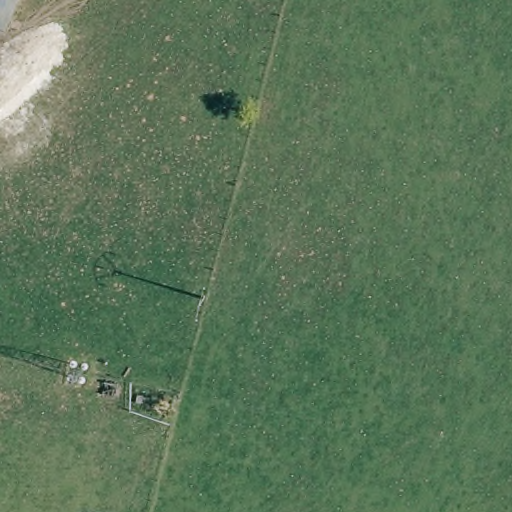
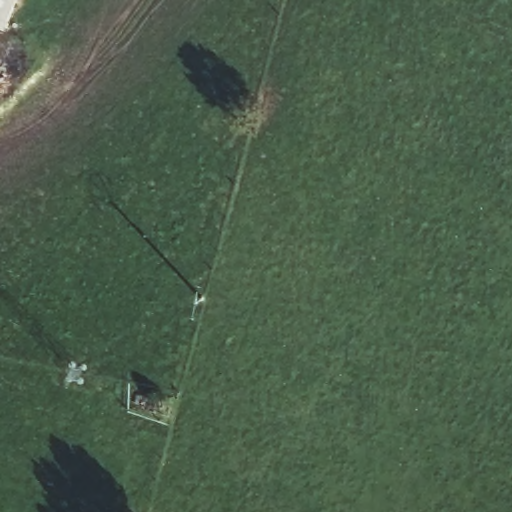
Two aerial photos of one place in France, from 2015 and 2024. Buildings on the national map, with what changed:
unchanged [(0,29),(0,0),(17,0),(4,31),(0,29)]

